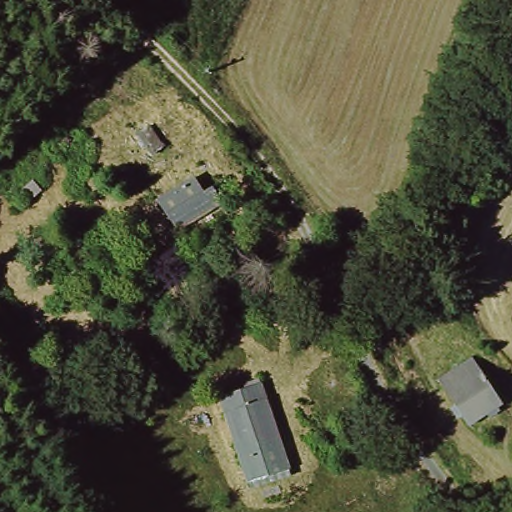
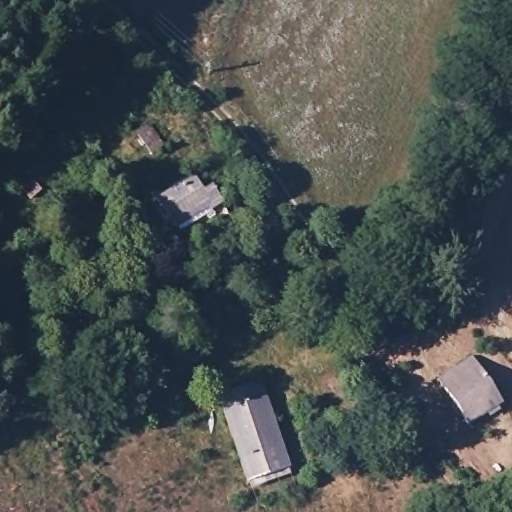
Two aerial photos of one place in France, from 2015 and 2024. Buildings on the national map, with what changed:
unchanged [(209,214),(177,233),(170,222),(180,216),(163,188),(185,175),(209,214)]
unchanged [(54,255),(32,255),(30,228),(52,230),(54,255)]
unchanged [(435,379),(467,356),(500,400),(467,423),(435,379)]
unchanged [(257,383),(300,463),(262,483),(220,402),(257,383)]

